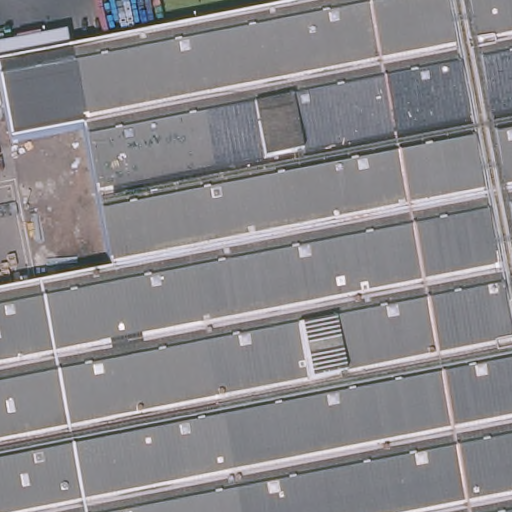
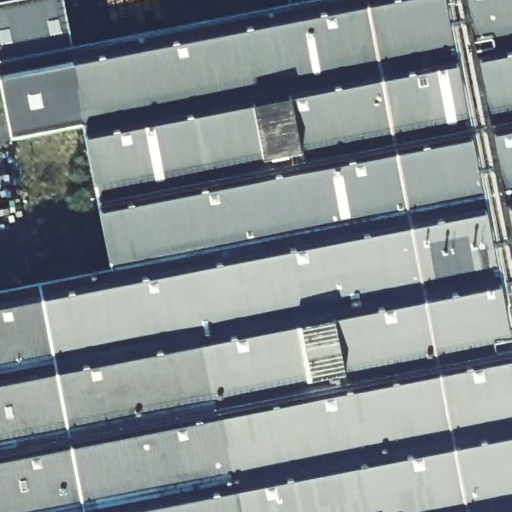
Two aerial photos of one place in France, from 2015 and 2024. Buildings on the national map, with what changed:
new [(0,6),(29,0),(62,0),(70,46),(0,61),(0,6)]
unchanged [(512,0),(512,512),(0,512),(0,287),(111,264),(84,119),(70,46),(80,44),(291,3),(306,0),(512,0)]
unchanged [(306,0),(291,3),(291,0),(306,0)]
unchanged [(13,133),(0,68),(0,61),(70,46),(84,119),(13,133)]

